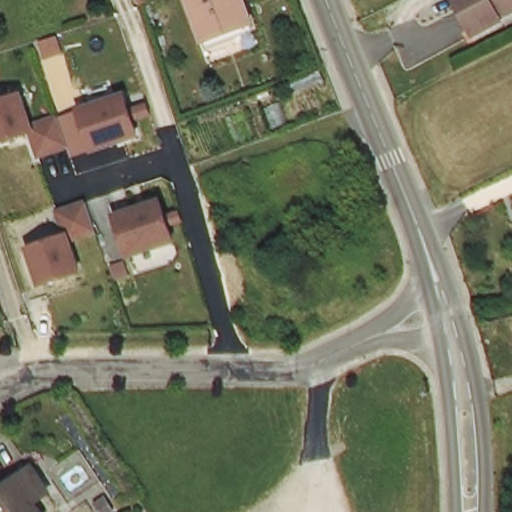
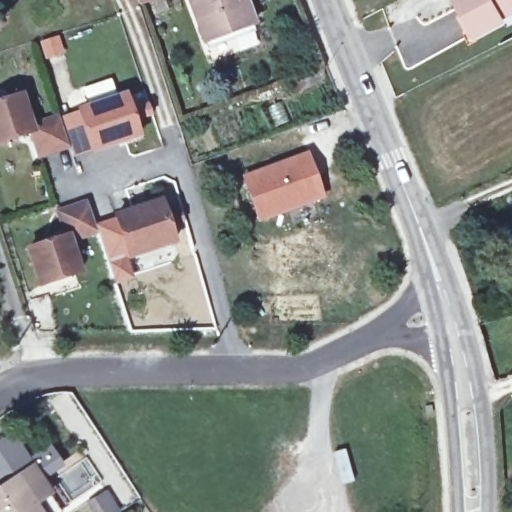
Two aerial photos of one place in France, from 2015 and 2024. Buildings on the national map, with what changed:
new [(137,0),(153,0),(139,5),(137,0)]
unchanged [(244,0),(254,26),(202,45),(188,0),(244,0)]
unchanged [(498,25),(470,39),(450,0),(512,0),(512,9),(495,18),(498,25)]
unchanged [(29,136),(0,145),(0,99),(25,91),(35,120),(57,111),(72,150),(39,160),(29,136)]
unchanged [(127,97),(141,137),(96,152),(82,113),(127,97)]
new [(245,178),(307,154),(323,195),(259,218),(245,178)]
unchanged [(184,242),(130,260),(115,213),(168,195),(184,242)]
unchanged [(80,238),(90,270),(41,286),(26,245),(57,236),(49,208),(87,196),(99,232),(80,238)]
unchanged [(0,486),(15,476),(30,467),(49,492),(32,502),(38,512),(0,512),(0,486)]
new [(120,510),(116,512),(92,512),(85,502),(107,489),(120,510)]

